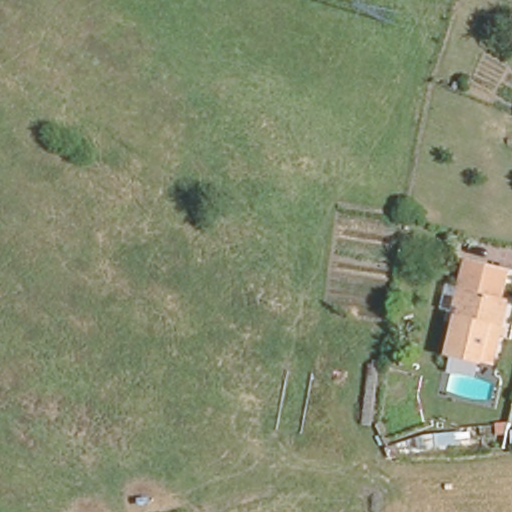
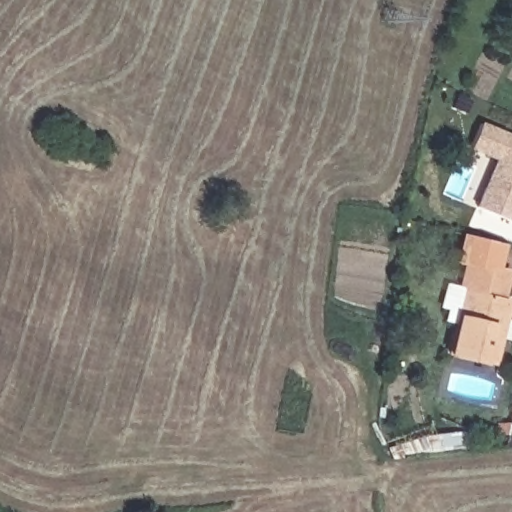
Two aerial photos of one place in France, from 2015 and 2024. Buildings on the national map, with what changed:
new [(472,150),(482,124),(512,137),(512,222),(475,207),(495,159),(472,150)]
new [(456,263),(462,233),(506,244),(501,271),(458,259),(457,263),(456,263)]
unchanged [(458,259),(501,271),(495,294),(502,297),(495,327),(501,329),(499,336),(493,334),(486,362),(442,350),(453,306),(459,284),(452,283),(458,259)]

